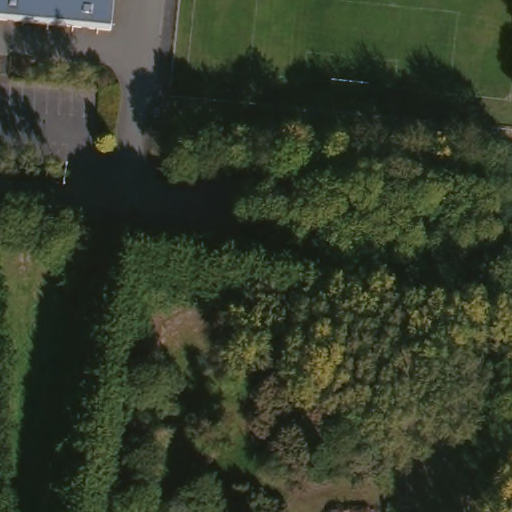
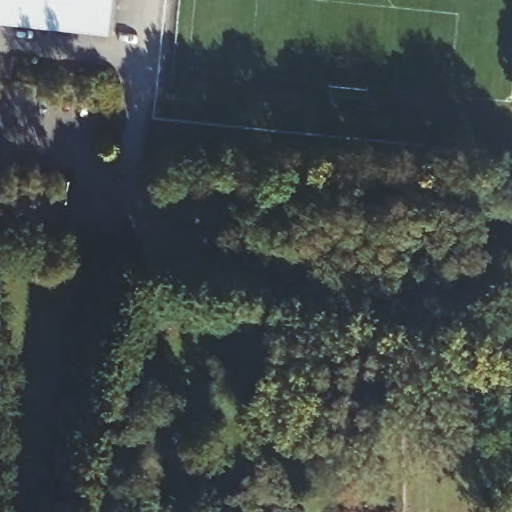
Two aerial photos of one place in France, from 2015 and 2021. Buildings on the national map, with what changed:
unchanged [(117,27),(0,18),(0,0),(120,0),(117,27)]

